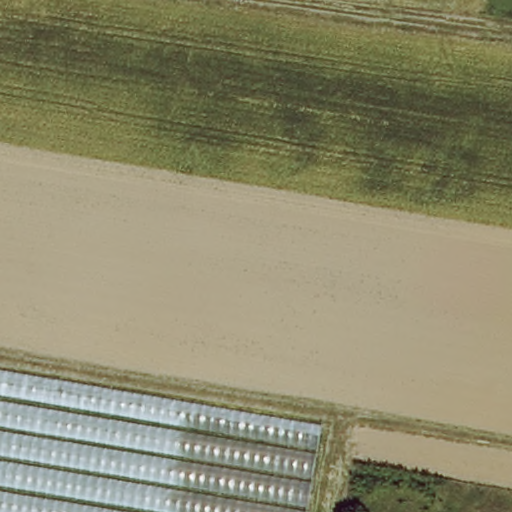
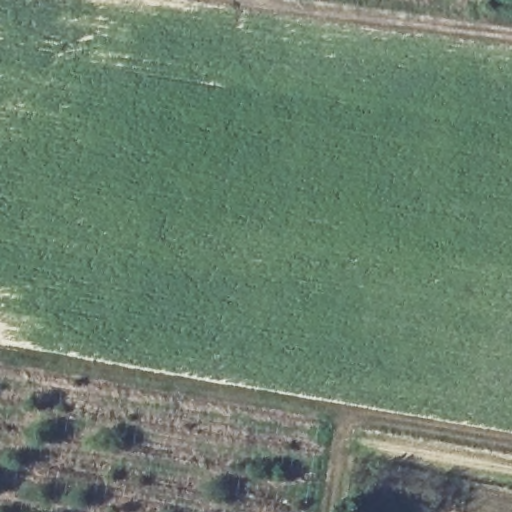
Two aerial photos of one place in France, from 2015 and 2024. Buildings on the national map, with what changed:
demolished [(310,512),(0,512),(0,373),(325,426),(310,512)]

